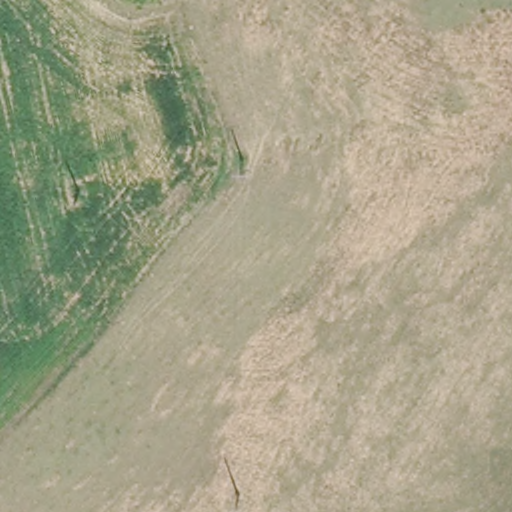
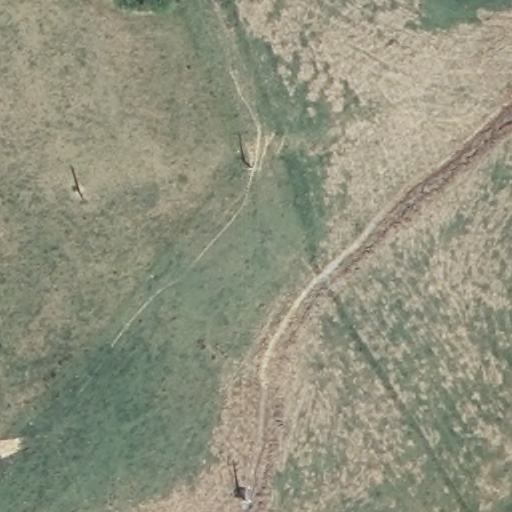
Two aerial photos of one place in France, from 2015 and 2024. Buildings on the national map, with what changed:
[]

